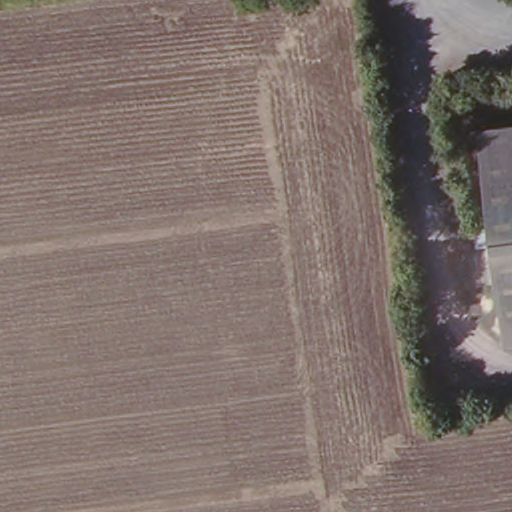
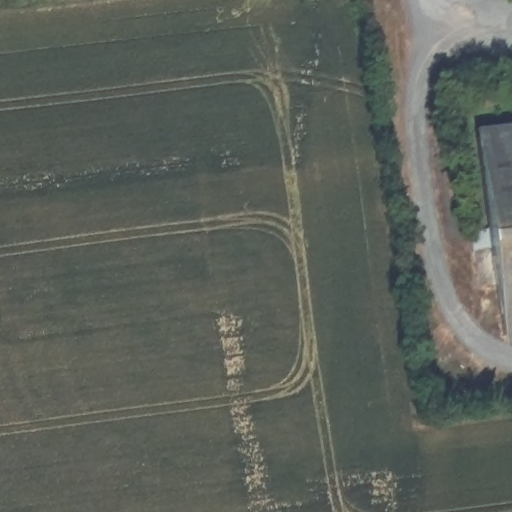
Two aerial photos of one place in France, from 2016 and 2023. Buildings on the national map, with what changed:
unchanged [(500,335),(476,134),(512,130),(512,334),(500,335)]

